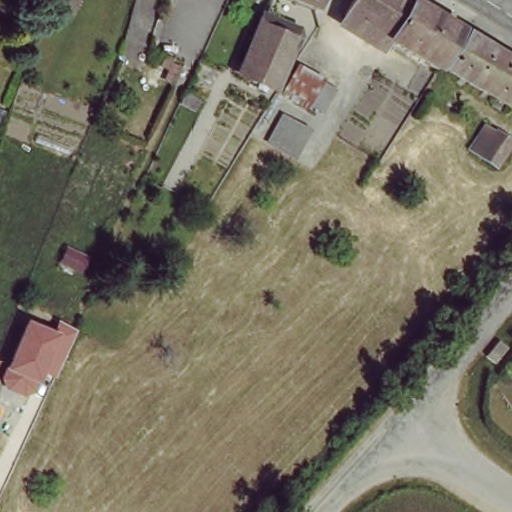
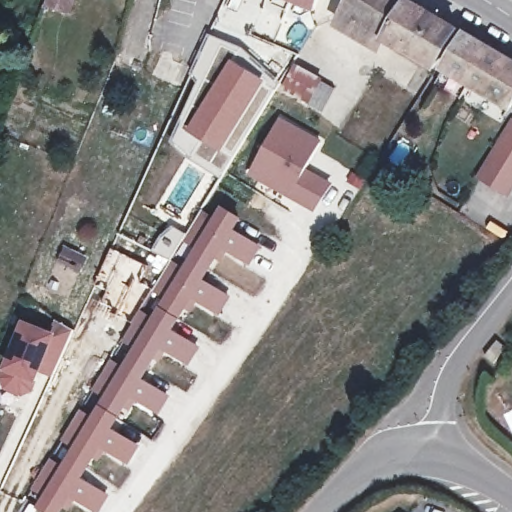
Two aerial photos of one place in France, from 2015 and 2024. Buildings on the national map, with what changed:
unchanged [(65,21),(46,14),(51,0),(78,0),(71,22),(65,21)]
unchanged [(325,0),(319,17),(277,0),(325,0)]
unchanged [(341,14),(349,0),(408,0),(456,29),(432,67),(341,14)]
demolished [(276,100),(231,82),(252,24),(295,43),(276,100)]
unchanged [(509,106),(500,101),(495,108),(485,102),(489,95),(460,77),(442,66),(463,33),(482,45),(512,63),(512,100),(509,106)]
new [(194,155),(203,138),(184,126),(221,45),(239,54),(230,69),(241,77),(245,72),(274,91),(222,174),(194,155)]
unchanged [(299,70),(333,94),(319,121),(284,100),(299,70)]
demolished [(281,117),(310,136),(295,171),(265,151),(281,117)]
new [(324,182),(308,207),(295,199),(247,171),(261,147),(275,120),(307,138),(292,165),(300,169),(324,182)]
new [(505,192),(479,176),(512,120),(512,182),(505,192)]
demolished [(479,158),(484,150),(476,145),(482,137),(474,132),(478,125),(512,145),(494,167),(479,158)]
new [(76,501),(70,511),(64,507),(61,512),(44,512),(37,508),(44,497),(32,490),(51,460),(63,467),(74,448),(62,441),(80,411),(93,418),(105,398),(93,390),(111,361),(124,368),(134,349),(123,341),(141,312),(153,319),(165,299),(153,292),(172,261),(184,269),(196,250),(184,241),(202,211),(215,220),(222,207),(242,220),(235,231),(261,248),(249,266),(229,252),(222,262),(217,258),(203,281),(231,298),(219,316),(197,303),(191,313),(186,311),(173,331),(200,348),(189,366),(167,352),(161,362),(156,358),(143,381),(169,397),(158,414),(136,401),(131,410),(126,407),(112,430),(140,447),(128,464),(105,451),(100,461),(95,458),(82,479),(109,497),(99,512),(93,512),(76,501)]
unchanged [(42,373),(33,392),(23,397),(5,390),(0,380),(0,378),(24,320),(52,332),(57,322),(75,332),(54,378),(42,373)]
demolished [(511,376),(507,376),(501,372),(497,367),(508,354),(512,357),(512,375),(511,376)]

